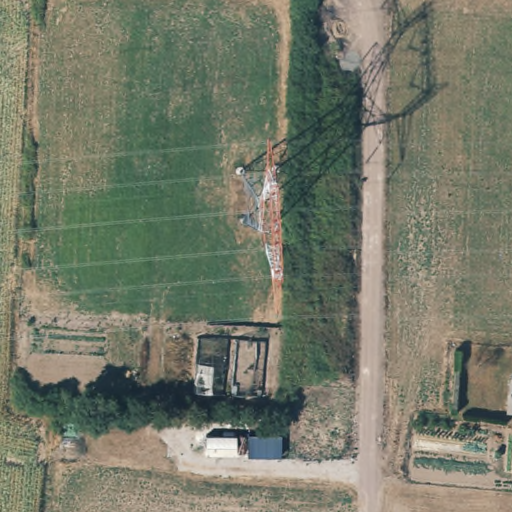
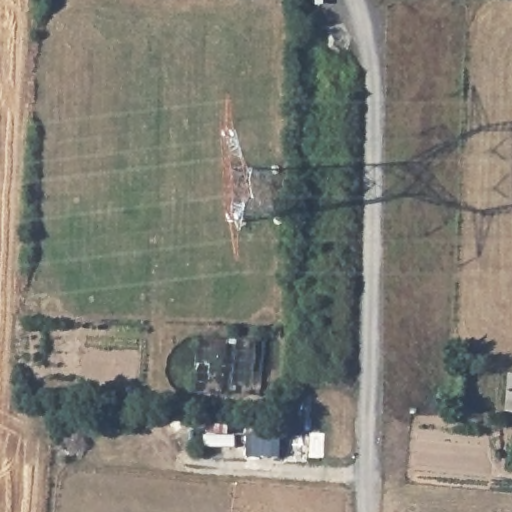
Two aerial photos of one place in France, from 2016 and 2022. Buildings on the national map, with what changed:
unchanged [(512,383),(512,415),(508,415),(512,383)]

